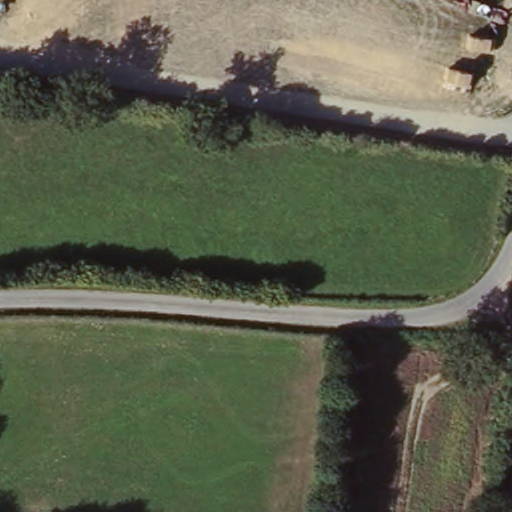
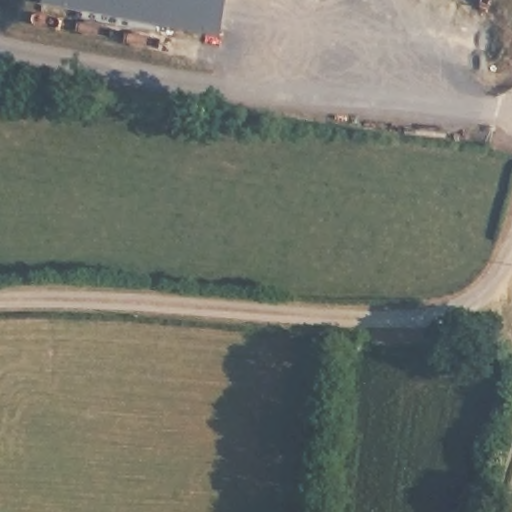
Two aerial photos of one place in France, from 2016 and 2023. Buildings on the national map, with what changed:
new [(45,0),(229,0),(222,37),(44,5),(45,0)]

